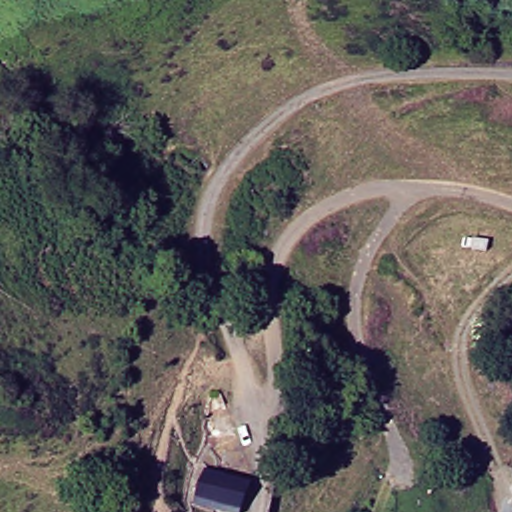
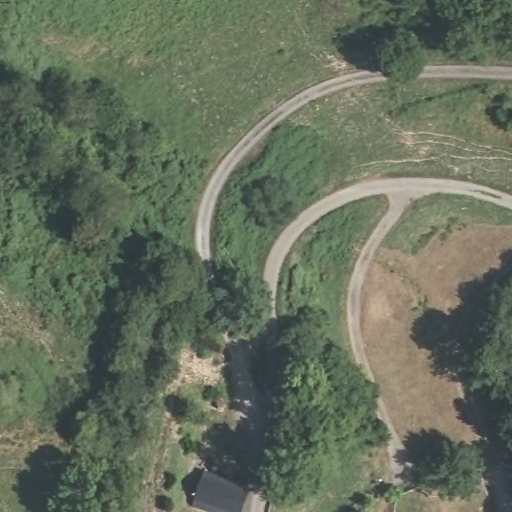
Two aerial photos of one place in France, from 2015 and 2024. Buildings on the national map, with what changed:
unchanged [(247,496),(241,512),(193,512),(192,512),(206,478),(225,487),(247,496)]

